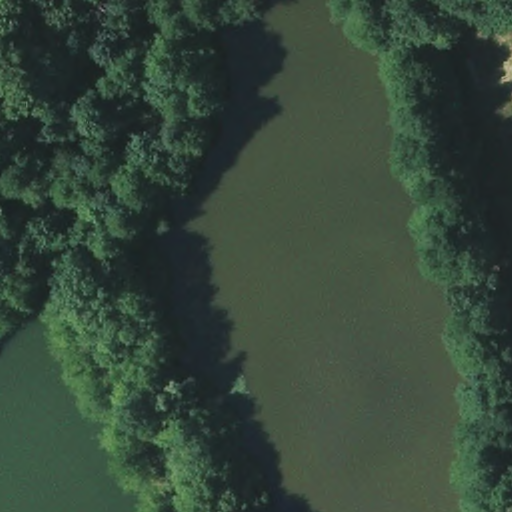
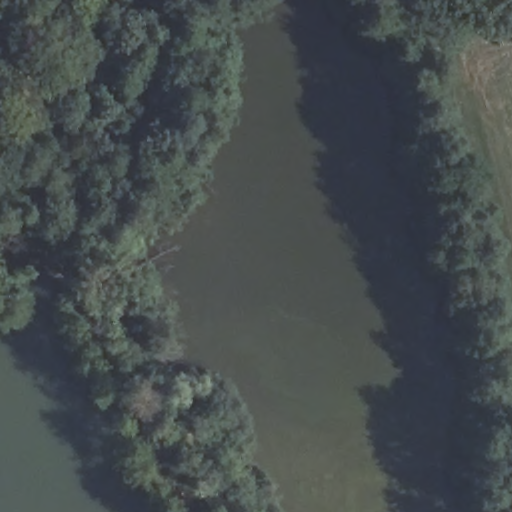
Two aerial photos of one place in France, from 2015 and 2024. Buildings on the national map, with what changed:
[]

